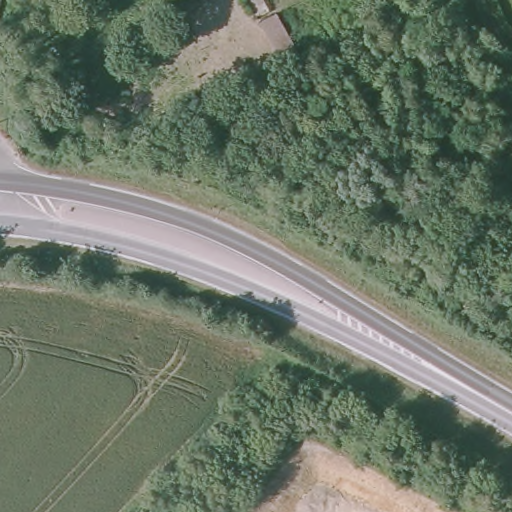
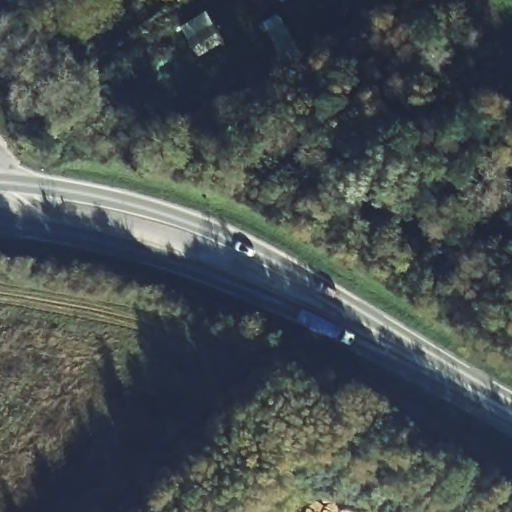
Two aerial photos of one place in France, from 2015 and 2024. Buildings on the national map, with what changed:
unchanged [(252,14),(244,0),(260,0),(265,7),(252,14)]
unchanged [(275,8),(295,43),(287,47),(275,54),(254,19),(275,8)]

